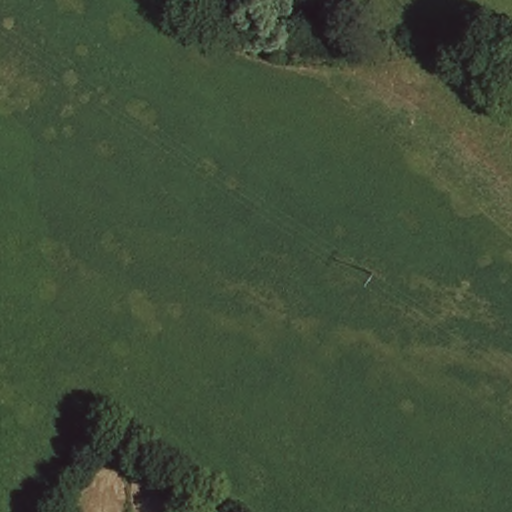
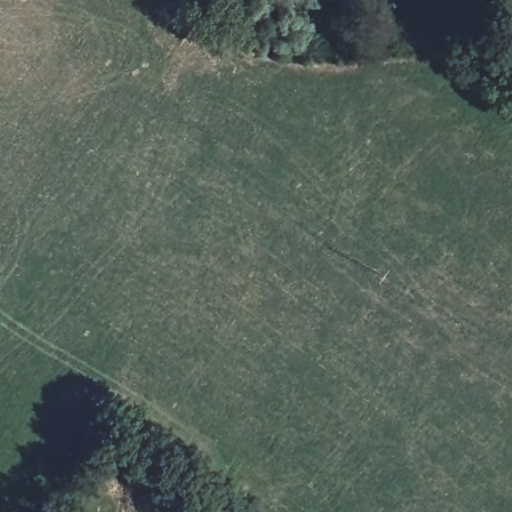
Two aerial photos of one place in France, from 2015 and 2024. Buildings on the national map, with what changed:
[]

